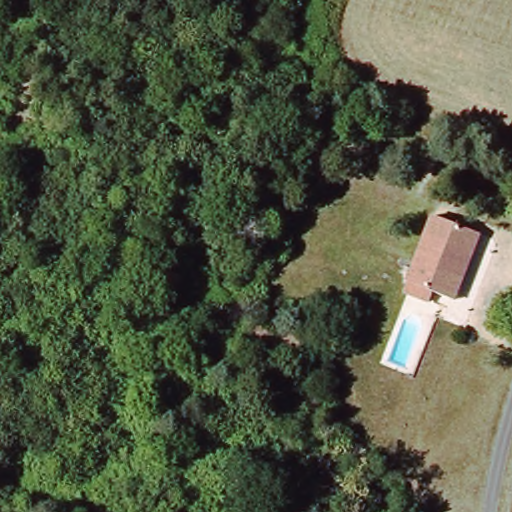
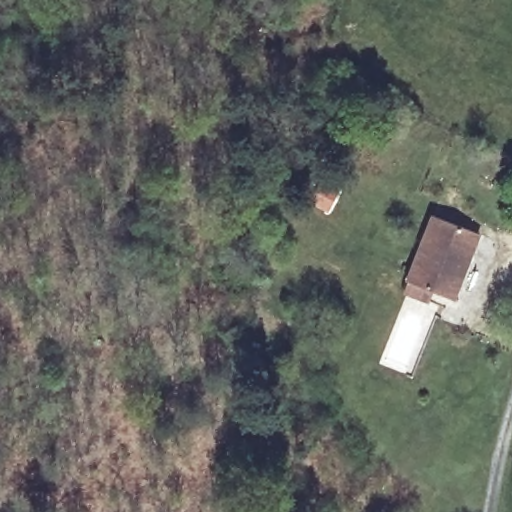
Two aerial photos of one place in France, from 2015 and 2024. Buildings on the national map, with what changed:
unchanged [(402,281),(429,214),(478,231),(469,254),(457,284),(450,301),(427,292),(422,305),(397,295),(402,281)]

